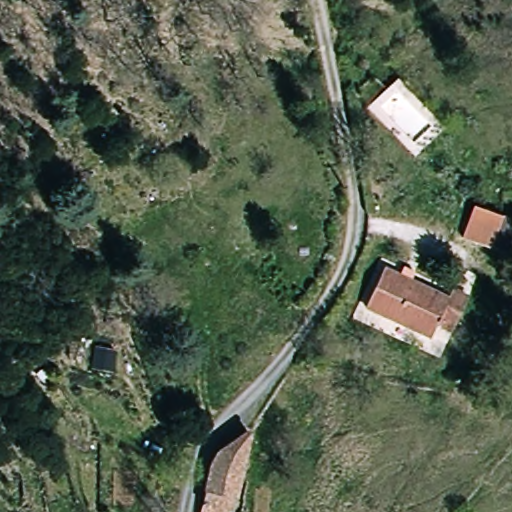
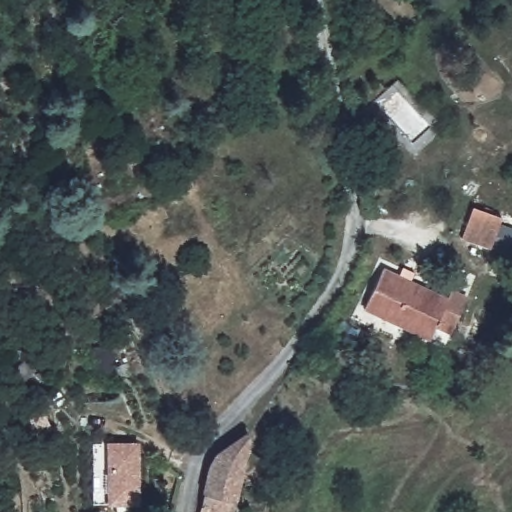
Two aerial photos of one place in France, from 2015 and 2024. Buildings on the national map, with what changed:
unchanged [(502,219),(489,247),(462,236),(475,207),(502,219)]
unchanged [(446,300),(451,292),(468,301),(446,340),(430,332),(426,339),(362,303),(383,267),(446,300)]
unchanged [(260,432),(233,512),(197,512),(197,507),(208,464),(212,456),(253,425),(260,432)]
new [(138,507),(106,506),(105,442),(140,442),(138,507)]

